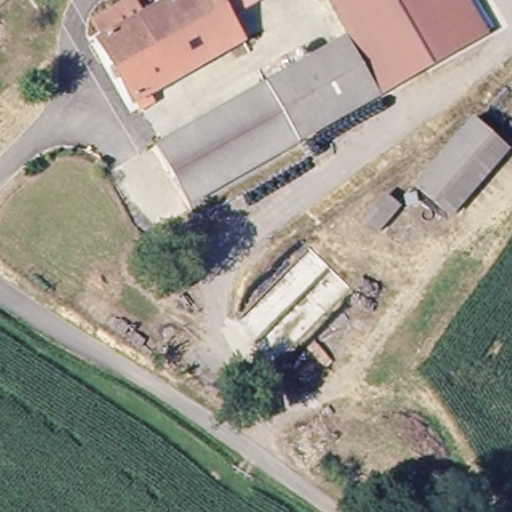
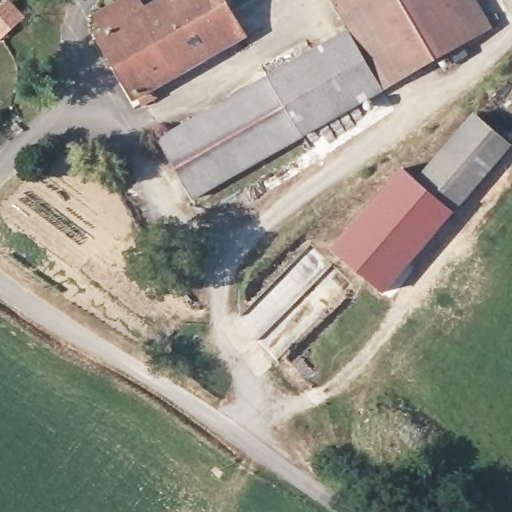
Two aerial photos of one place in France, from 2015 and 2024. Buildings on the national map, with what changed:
new [(10,0),(22,13),(0,32),(0,7),(8,0),(10,0)]
unchanged [(135,96),(102,38),(108,35),(97,18),(125,0),(139,0),(146,11),(164,0),(225,0),(232,11),(245,34),(135,96)]
unchanged [(225,0),(249,0),(232,11),(225,0)]
unchanged [(385,84),(336,0),(472,0),(487,27),(471,39),(385,84)]
unchanged [(161,141),(270,76),(342,35),(376,90),(304,136),(196,201),(161,141)]
unchanged [(422,179),(475,115),(511,145),(457,209),(422,179)]
new [(422,179),(457,209),(383,294),(332,250),(402,167),(422,179)]
demolished [(374,212),(393,191),(406,200),(387,222),(374,212)]

